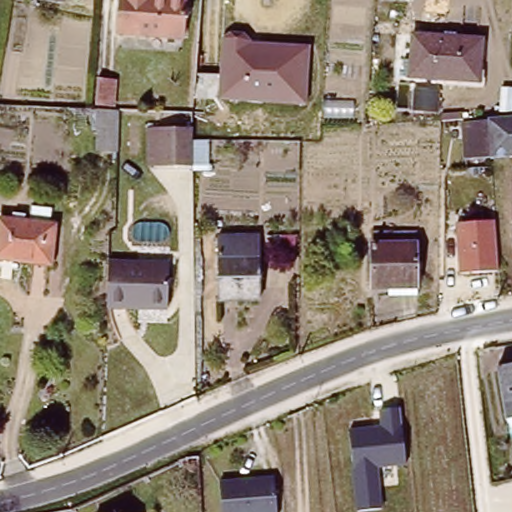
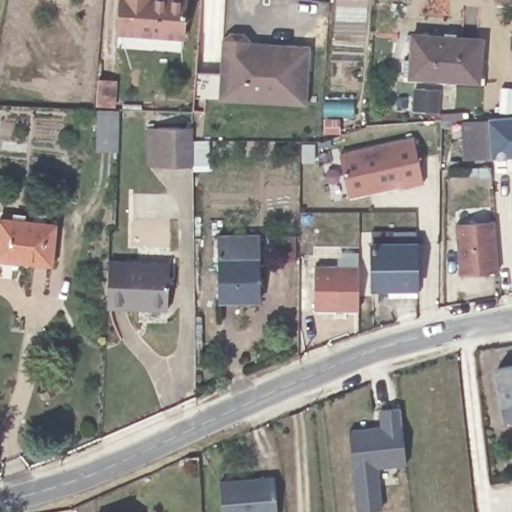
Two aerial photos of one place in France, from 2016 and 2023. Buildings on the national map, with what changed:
unchanged [(120,34),(121,0),(185,0),(184,37),(120,34)]
unchanged [(408,75),(412,33),(480,39),(476,80),(408,75)]
unchanged [(305,107),(216,102),(220,34),(251,36),(250,44),(310,46),(305,107)]
unchanged [(112,148),(93,147),(95,108),(113,109),(112,148)]
unchanged [(465,161),(463,128),(512,121),(512,159),(465,161)]
unchanged [(150,124),(160,124),(195,124),(195,137),(196,162),(160,161),(150,161),(150,124)]
new [(403,187),(403,185),(349,196),(338,152),(412,136),(423,182),(403,187)]
unchanged [(0,258),(0,222),(0,216),(58,222),(53,264),(0,258)]
new [(490,219),(495,270),(457,273),(452,222),(490,219)]
unchanged [(217,298),(217,233),(257,234),(257,298),(217,298)]
unchanged [(375,293),(375,238),(395,238),(395,246),(418,246),(418,292),(375,293)]
unchanged [(170,262),(168,304),(110,303),(112,260),(170,262)]
new [(312,308),(314,264),(358,265),(358,310),(312,308)]
unchanged [(512,360),(512,414),(509,414),(500,361),(512,360)]
unchanged [(381,408),(400,406),(407,465),(377,468),(380,510),(357,512),(350,428),(382,426),(381,408)]
unchanged [(269,476),(271,512),(217,512),(215,479),(269,476)]

